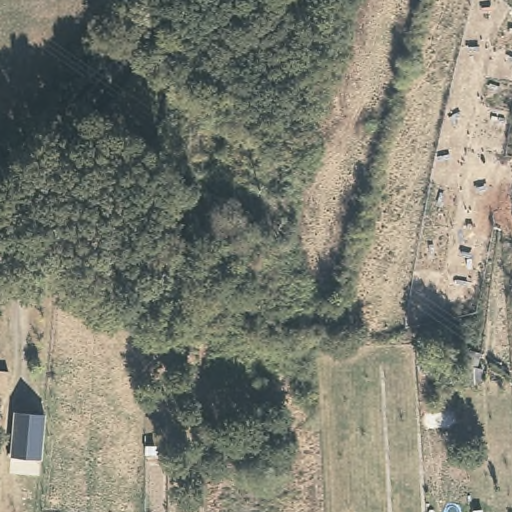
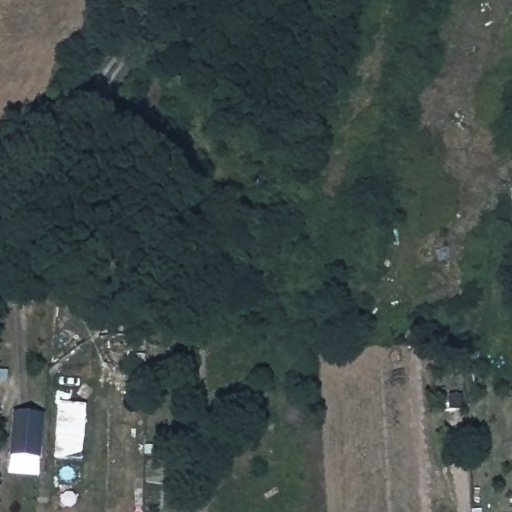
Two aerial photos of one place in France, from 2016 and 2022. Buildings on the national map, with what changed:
unchanged [(13,413),(43,416),(42,428),(39,461),(9,458),(13,413)]

